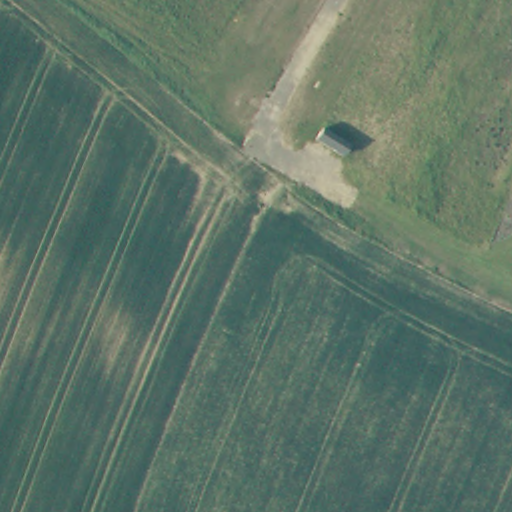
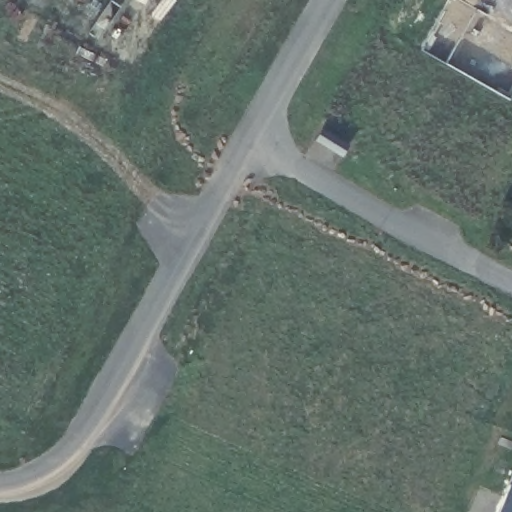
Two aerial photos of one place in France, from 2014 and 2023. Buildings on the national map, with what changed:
new [(512,479),(512,512),(499,512),(512,479)]

